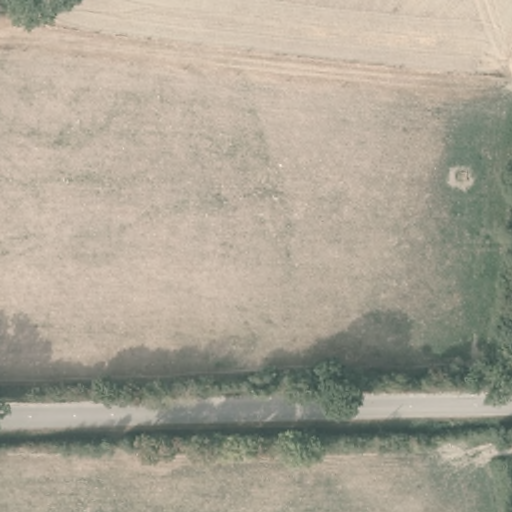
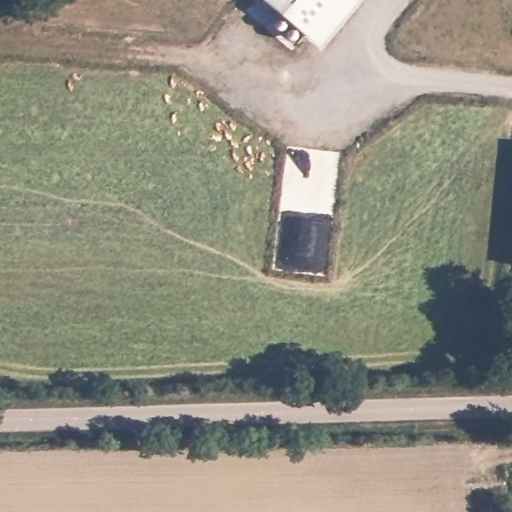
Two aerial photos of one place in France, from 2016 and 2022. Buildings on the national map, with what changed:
new [(317,49),(260,0),(358,0),(317,49)]

